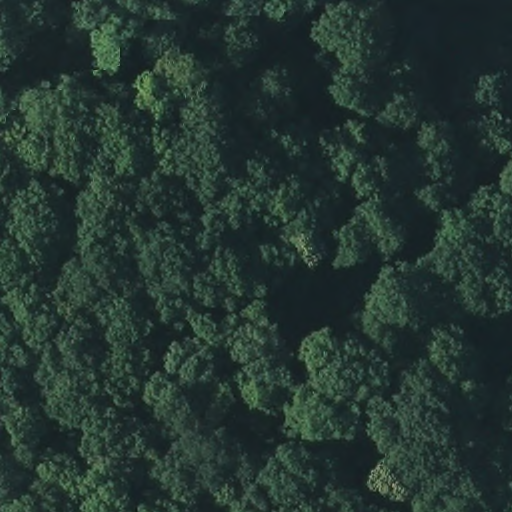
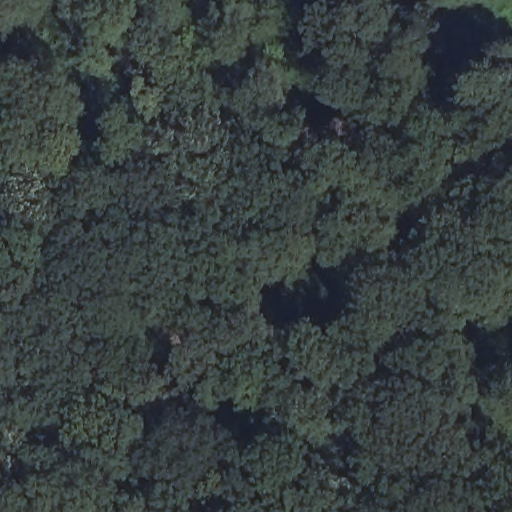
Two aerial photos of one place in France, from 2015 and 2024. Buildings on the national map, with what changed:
[]

